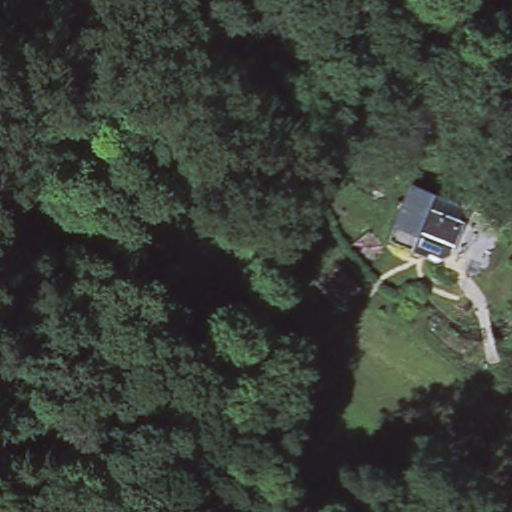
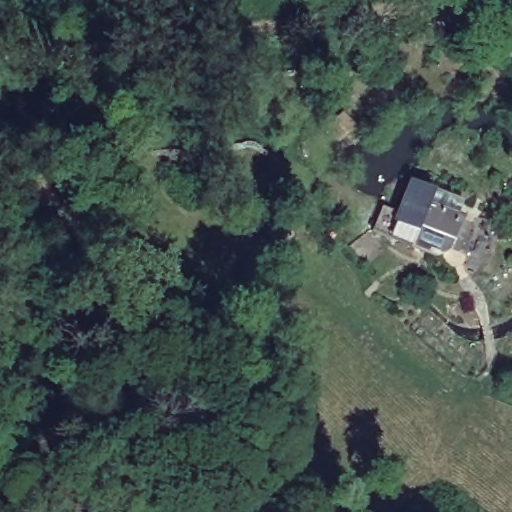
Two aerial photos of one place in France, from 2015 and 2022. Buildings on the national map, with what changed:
unchanged [(345,121),(330,132),(319,119),(333,107),(345,121)]
unchanged [(431,194),(425,206),(460,221),(451,240),(418,226),(415,232),(393,223),(410,185),(431,194)]
unchanged [(305,221),(301,241),(280,238),(283,218),(305,221)]

